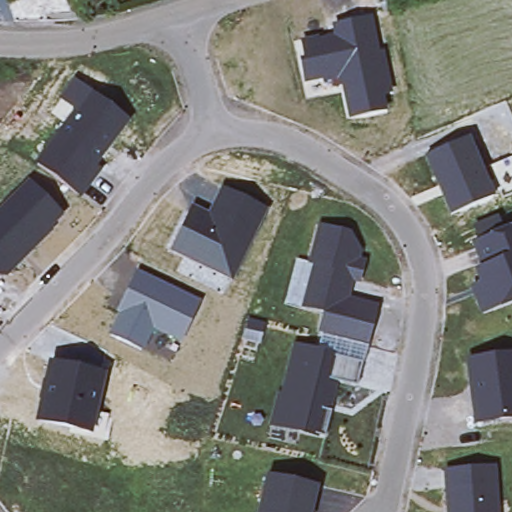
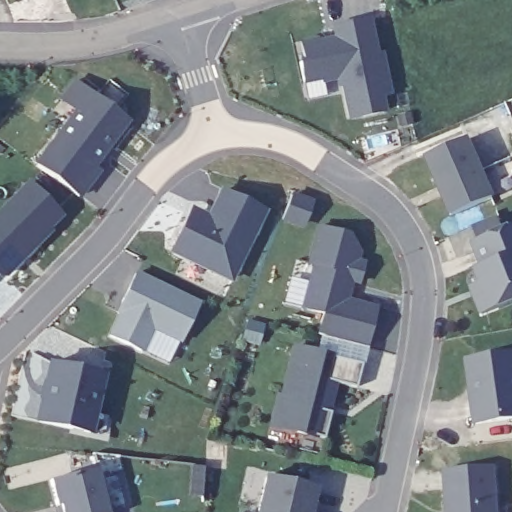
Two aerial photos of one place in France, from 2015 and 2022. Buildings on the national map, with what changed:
unchanged [(341,85),(324,79),(303,83),(298,59),(304,57),(301,41),(333,35),(331,24),(373,17),(379,51),(384,51),(392,95),(383,96),(386,112),(349,119),(341,85)]
unchanged [(36,163),(75,109),(59,98),(73,79),(131,121),(98,166),(102,171),(81,197),(36,163)]
unchanged [(494,196),(449,215),(424,155),(470,136),(494,196)]
unchanged [(28,181),(64,215),(52,228),(53,231),(6,277),(0,277),(0,209),(28,181)]
unchanged [(268,212),(233,285),(168,255),(189,207),(208,214),(219,191),(268,212)]
unchanged [(291,195),(310,201),(301,225),(283,218),(291,195)]
unchanged [(468,292),(477,288),(472,274),(478,272),(468,247),(474,243),(469,228),(496,220),(500,231),(512,227),(512,306),(479,320),(468,292)]
unchanged [(318,335),(322,312),(302,308),(312,265),(307,264),(318,225),(354,235),(361,255),(360,262),(364,265),(359,287),(349,285),(346,298),(378,309),(369,349),(318,335)]
unchanged [(108,335),(119,313),(116,312),(136,271),(202,301),(180,344),(153,332),(143,351),(108,335)]
unchanged [(271,425),(278,394),(283,394),(295,343),(318,349),(321,336),(323,336),(369,349),(358,387),(339,382),(325,437),(271,425)]
unchanged [(512,420),(473,425),(463,361),(512,355),(512,420)]
unchanged [(106,374),(92,435),(35,422),(48,361),(106,374)]
new [(110,512),(111,512),(58,512),(49,478),(98,467),(110,512)]
unchanged [(497,469),(499,512),(444,512),(443,474),(497,469)]
unchanged [(268,475),(317,490),(312,512),(258,512),(268,475)]

